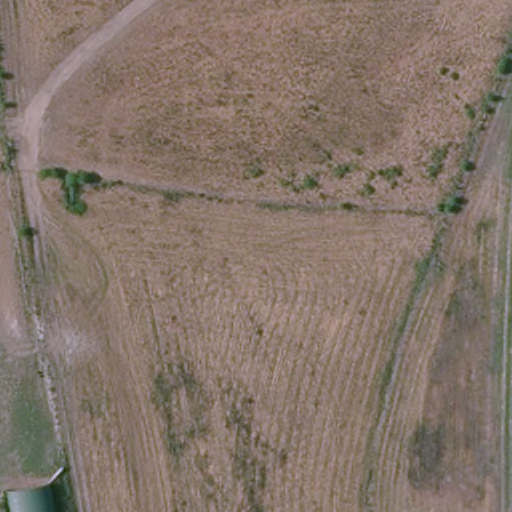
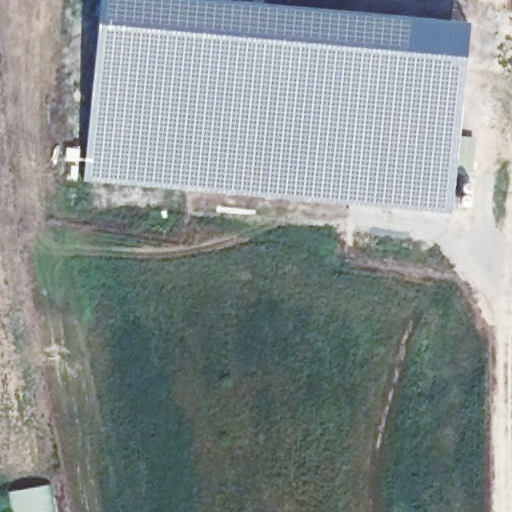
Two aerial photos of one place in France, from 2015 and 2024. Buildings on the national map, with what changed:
new [(83,182),(99,0),(215,0),(468,22),(452,214),(83,182)]
new [(50,484),(54,512),(9,512),(7,491),(50,484)]

